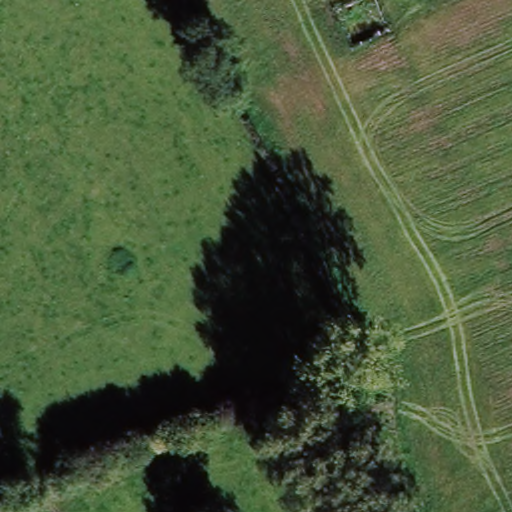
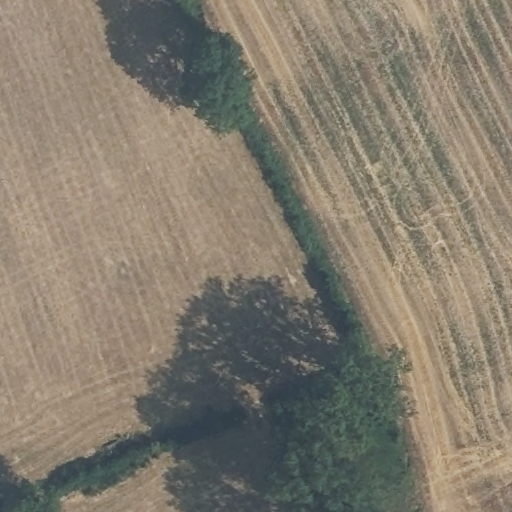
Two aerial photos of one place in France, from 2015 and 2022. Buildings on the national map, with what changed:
[]

